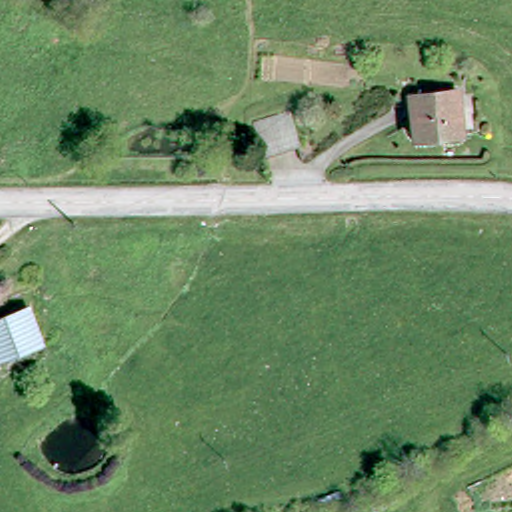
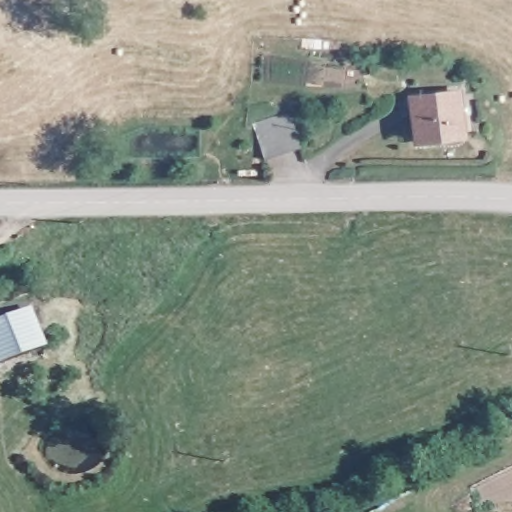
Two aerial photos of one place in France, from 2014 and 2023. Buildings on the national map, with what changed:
unchanged [(464,125),(453,126),(409,131),(405,92),(449,87),(450,98),(461,97),(464,125)]
unchanged [(256,152),(245,117),(264,111),(281,106),(291,143),(266,150),(256,152)]
unchanged [(34,344),(0,357),(0,321),(22,312),(34,344)]

